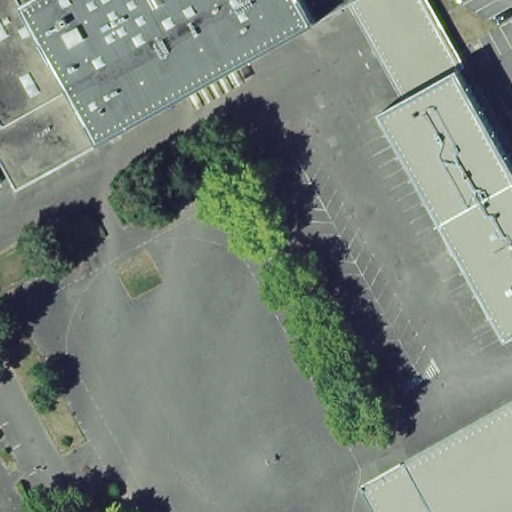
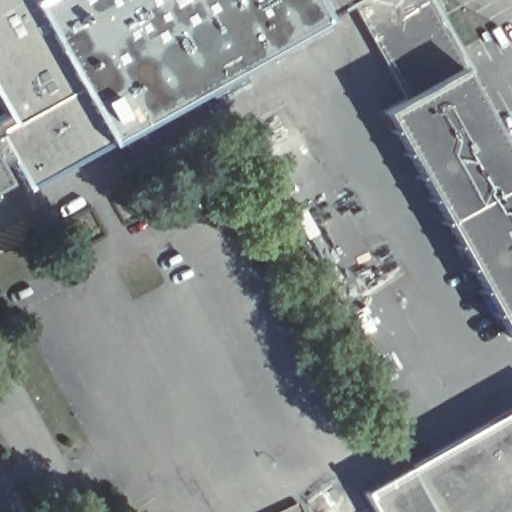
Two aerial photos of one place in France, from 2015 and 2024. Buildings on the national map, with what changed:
unchanged [(23,180),(8,152),(0,137),(0,120),(9,115),(0,100),(0,0),(346,0),(23,180)]
unchanged [(466,61),(461,63),(410,91),(359,0),(431,0),(466,61)]
unchanged [(410,91),(461,63),(512,156),(512,330),(510,331),(384,106),(410,91)]
unchanged [(0,156),(0,137),(8,152),(0,156)]
unchanged [(0,176),(0,171),(2,175),(0,176)]
unchanged [(425,512),(402,472),(512,411),(512,512),(425,512)]
unchanged [(367,512),(359,497),(402,472),(425,512),(367,512)]

